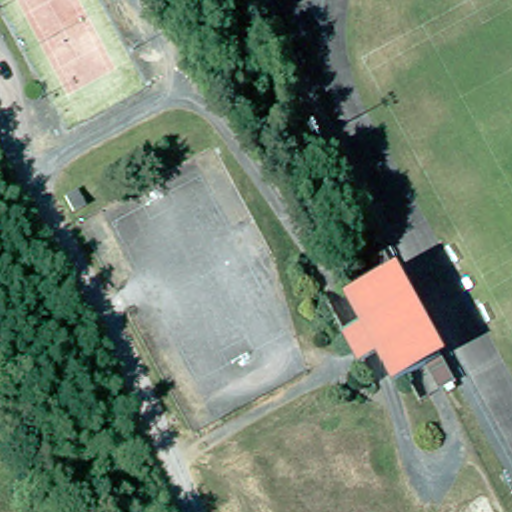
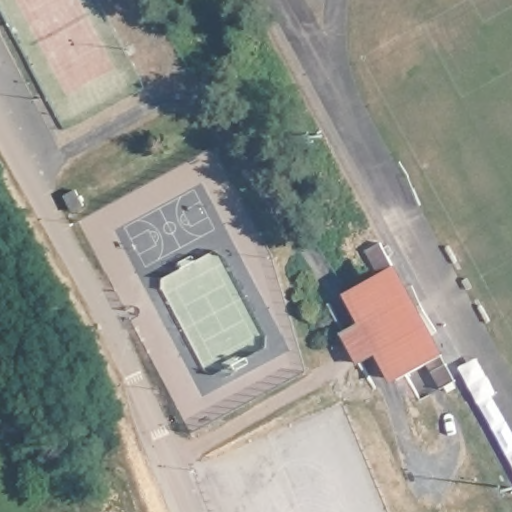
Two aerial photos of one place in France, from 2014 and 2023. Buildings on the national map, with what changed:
unchanged [(71,191),(60,197),(52,181),(63,175),(71,191)]
unchanged [(344,329),(366,317),(351,288),(379,273),(366,247),(382,238),(396,265),(442,353),(398,376),(383,347),(360,359),(344,329)]
unchanged [(456,379),(442,387),(432,369),(447,361),(456,379)]

